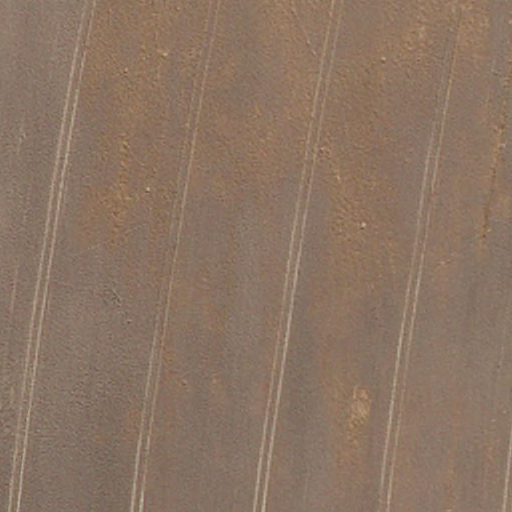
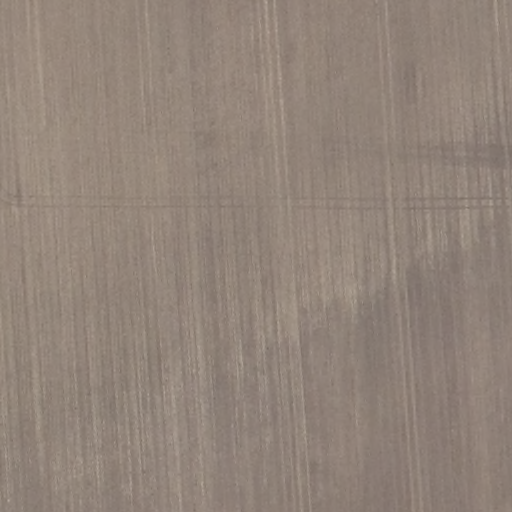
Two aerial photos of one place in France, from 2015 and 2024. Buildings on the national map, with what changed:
[]

